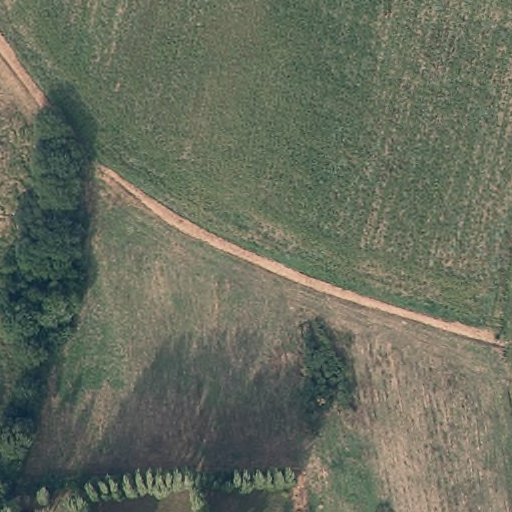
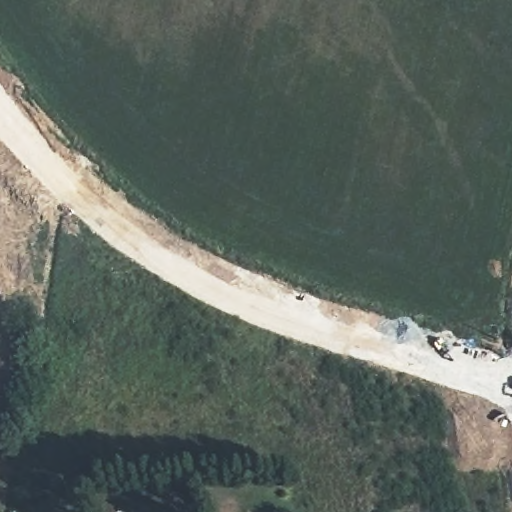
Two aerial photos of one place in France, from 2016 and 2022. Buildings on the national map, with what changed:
[]

